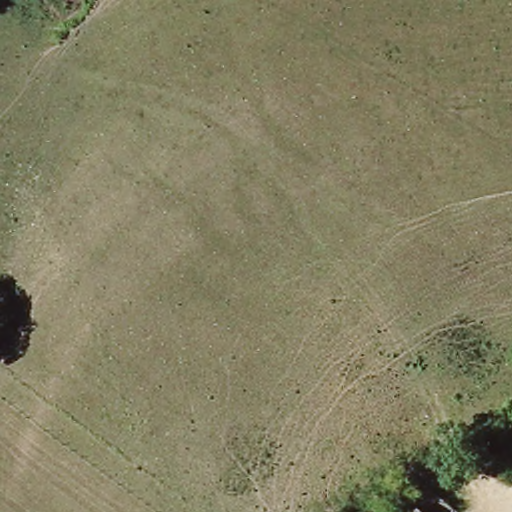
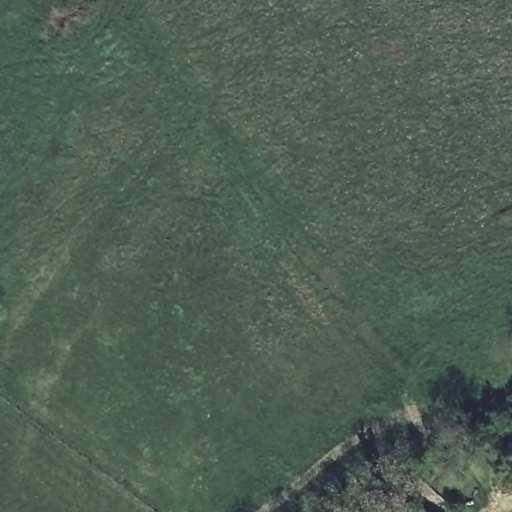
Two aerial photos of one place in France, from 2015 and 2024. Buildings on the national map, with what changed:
unchanged [(415,500),(427,512),(404,512),(415,500)]
unchanged [(396,512),(384,512),(390,506),(396,512)]

